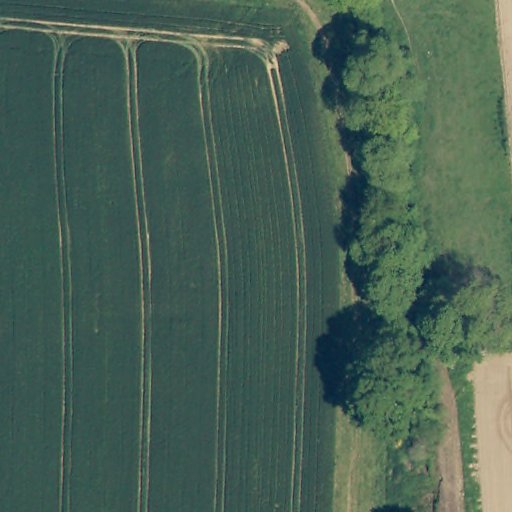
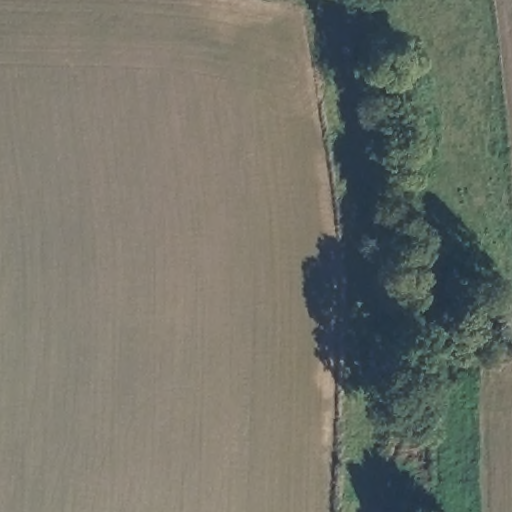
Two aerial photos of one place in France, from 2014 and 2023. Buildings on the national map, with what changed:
[]

